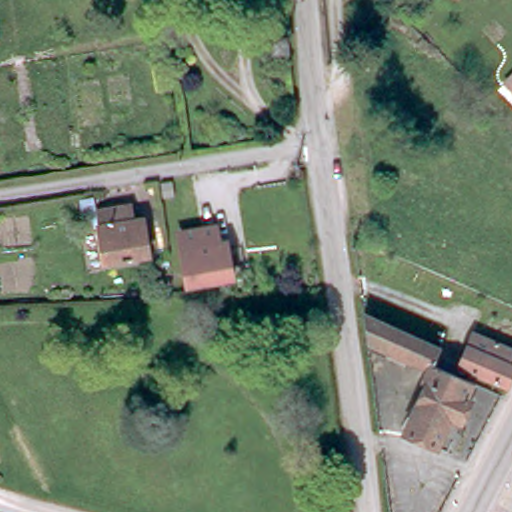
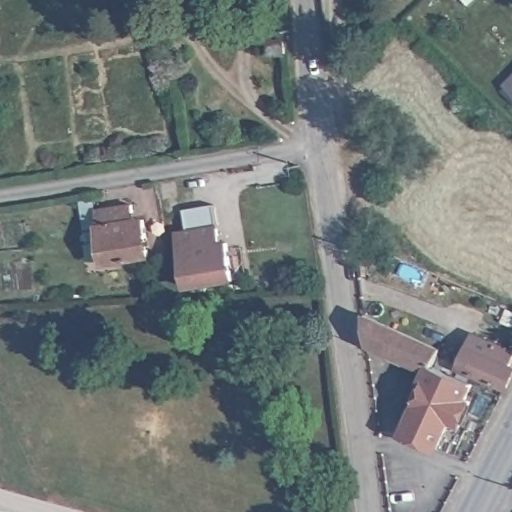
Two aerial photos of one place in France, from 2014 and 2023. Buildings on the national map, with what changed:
unchanged [(512,72),(512,87),(504,80),(512,72)]
unchanged [(102,207),(138,201),(141,217),(150,216),(156,254),(111,261),(104,220),(91,222),(88,196),(100,195),(102,207)]
unchanged [(198,213),(213,210),(220,250),(228,249),(233,285),(189,292),(183,256),(184,256),(182,239),(188,237),(185,219),(198,216),(198,213)]
unchanged [(436,362),(444,366),(471,378),(475,380),(468,396),(471,397),(461,421),(453,417),(440,445),(438,445),(407,431),(430,382),(426,380),(430,370),(410,360),(408,365),(371,349),(370,338),(366,311),(442,346),(436,362)]
unchanged [(464,356),(476,330),(512,346),(512,360),(511,363),(512,364),(512,376),(508,383),(462,362),(456,360),(459,353),(464,356)]

